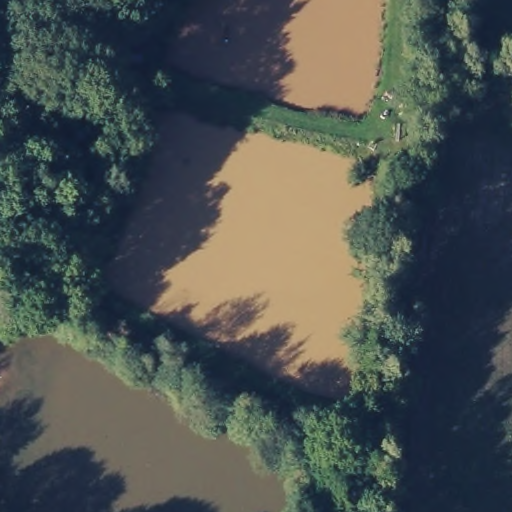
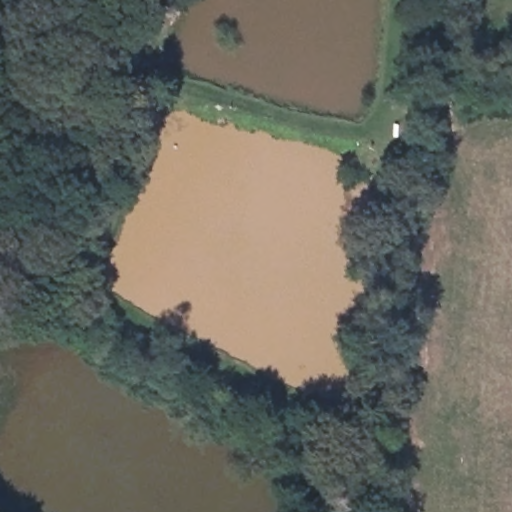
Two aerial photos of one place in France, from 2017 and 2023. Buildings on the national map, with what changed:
unchanged [(142,36),(140,59),(128,57),(128,35),(142,36)]

